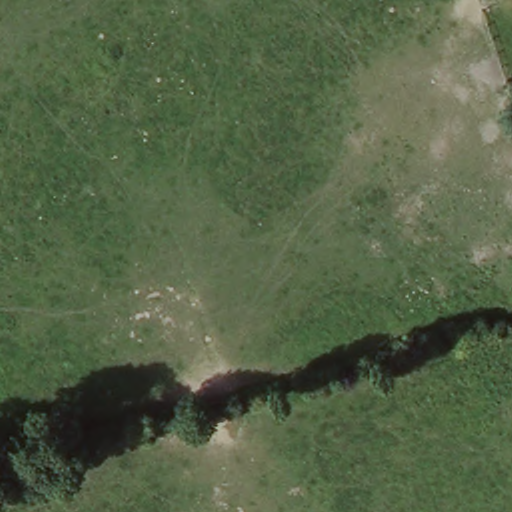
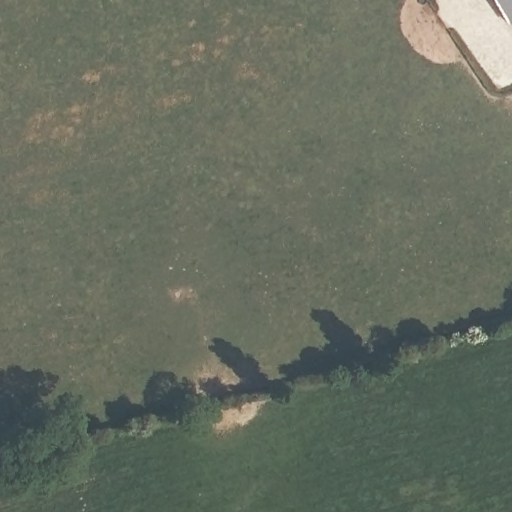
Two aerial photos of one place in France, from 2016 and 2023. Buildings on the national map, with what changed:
new [(512,21),(508,24),(493,0),(512,0),(512,21)]

